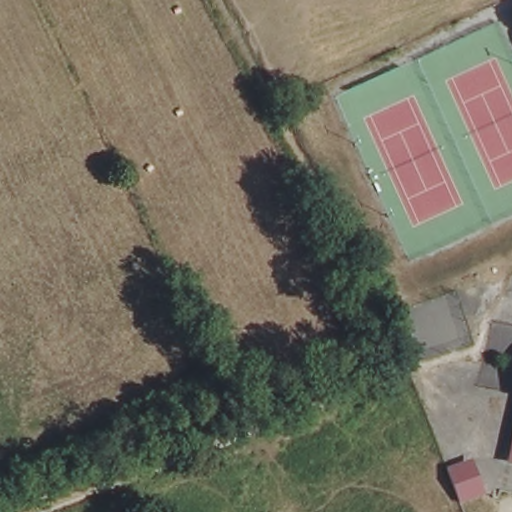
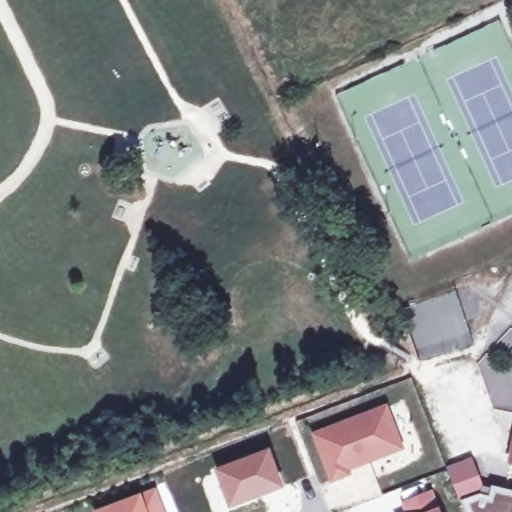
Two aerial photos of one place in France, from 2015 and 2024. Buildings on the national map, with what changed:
new [(386,406),(401,445),(346,466),(348,470),(333,476),(316,432),(386,406)]
new [(269,448),(283,489),(227,510),(212,469),(269,448)]
unchanged [(509,464),(512,449),(512,465),(509,464)]
demolished [(451,474),(470,467),(479,488),(483,498),(464,505),(451,474)]
new [(492,487),(512,492),(512,512),(466,512),(464,505),(451,474),(470,467),(479,488),(483,498),(489,499),(492,487)]
new [(155,490),(165,512),(95,512),(155,490)]
new [(439,509),(440,512),(405,512),(401,504),(431,491),(439,509)]

